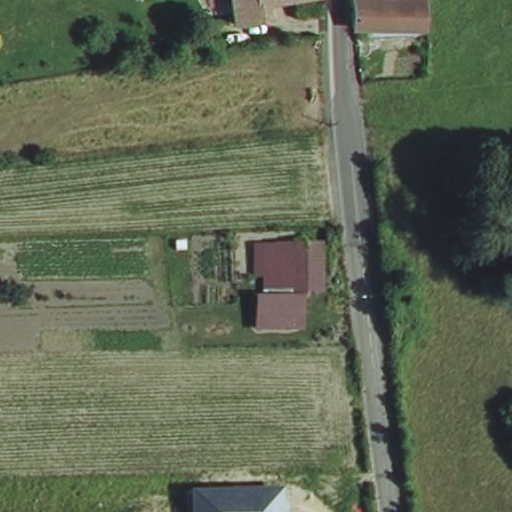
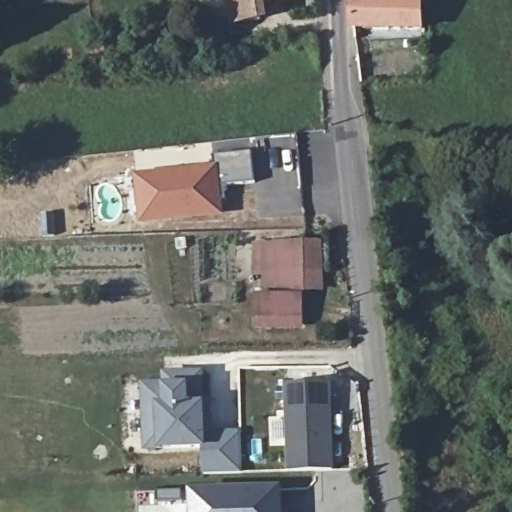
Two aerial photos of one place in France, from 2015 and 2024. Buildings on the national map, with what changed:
unchanged [(224,25),(221,0),(272,0),(273,19),(224,25)]
unchanged [(299,0),(326,0),(326,11),(300,17),(299,0)]
unchanged [(352,0),(422,0),(422,28),(353,28),(352,7),(352,0)]
unchanged [(179,50),(176,36),(204,32),(206,46),(179,50)]
new [(250,149),(255,183),(222,186),(217,161),(215,162),(213,154),(250,149)]
new [(215,162),(217,161),(222,186),(224,215),(134,224),(130,175),(215,162)]
unchanged [(250,242),(321,236),(323,286),(301,289),(302,328),(255,329),(250,242)]
new [(206,397),(211,398),(212,431),(239,431),(241,471),(201,473),(203,447),(158,450),(144,450),(140,384),(163,384),(161,372),(204,372),(206,397)]
new [(284,385),(331,384),(334,469),(288,471),(284,385)]
unchanged [(280,486),(282,512),(188,512),(187,488),(280,486)]

